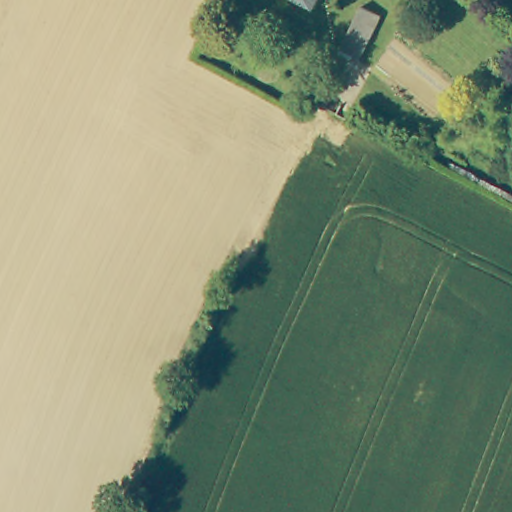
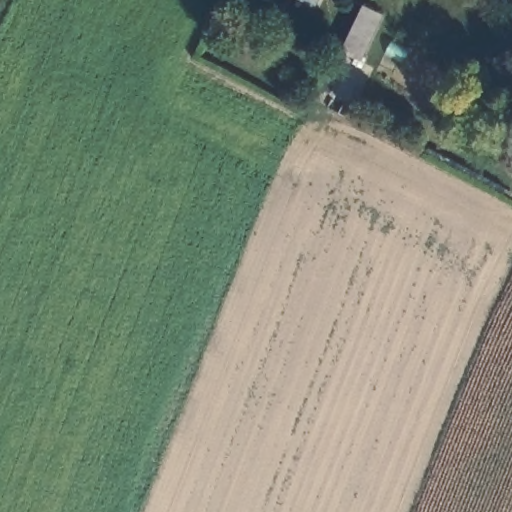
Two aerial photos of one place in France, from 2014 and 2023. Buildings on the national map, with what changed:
unchanged [(379,14),(362,53),(343,45),(360,6),(379,14)]

